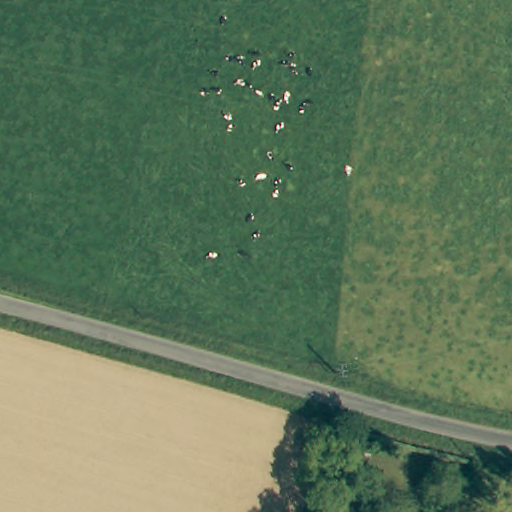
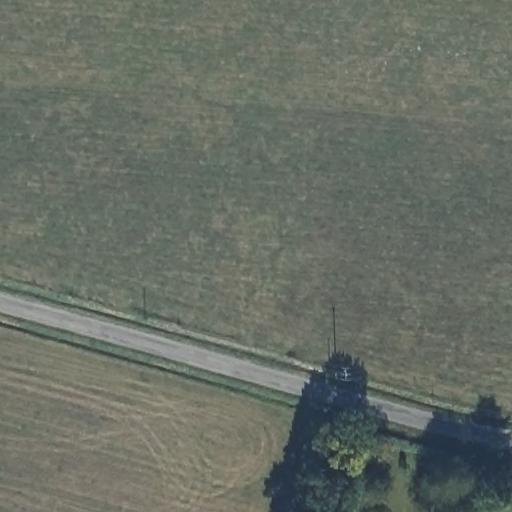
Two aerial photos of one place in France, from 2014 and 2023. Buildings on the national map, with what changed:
[]

